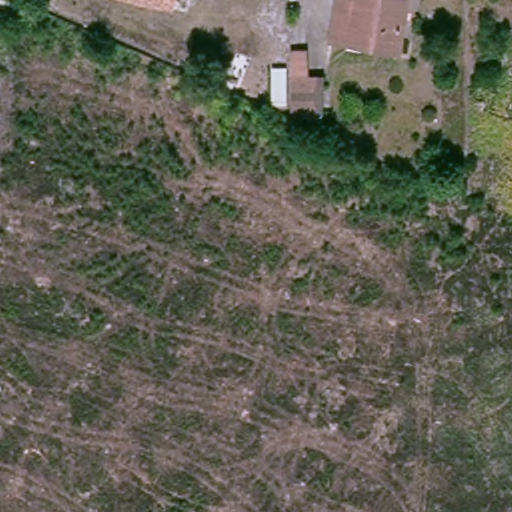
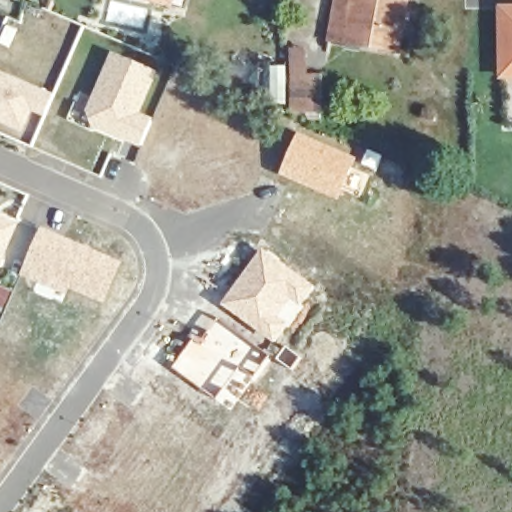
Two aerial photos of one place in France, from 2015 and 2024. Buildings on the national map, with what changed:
unchanged [(164,0),(173,0),(172,3),(164,0)]
unchanged [(329,40),(337,0),(404,0),(406,1),(399,43),(396,53),(347,44),(329,40)]
new [(512,5),(512,78),(499,79),(498,5),(512,5)]
new [(140,146),(92,127),(86,110),(111,53),(157,71),(141,113),(152,118),(140,146)]
demolished [(234,95),(253,59),(284,73),(266,110),(234,95)]
new [(0,122),(0,71),(53,95),(44,116),(32,111),(22,131),(0,122)]
unchanged [(326,116),(292,118),(290,76),(325,75),(326,116)]
new [(338,200),(280,176),(297,133),(356,158),(338,200)]
new [(16,226),(0,264),(0,218),(16,226)]
new [(104,304),(69,289),(66,296),(20,276),(41,227),(122,263),(104,304)]
new [(300,307),(290,300),(278,317),(288,324),(274,343),(221,306),(261,249),(314,287),(300,307)]
new [(232,410),(173,368),(194,338),(201,343),(219,318),(271,354),(232,410)]

